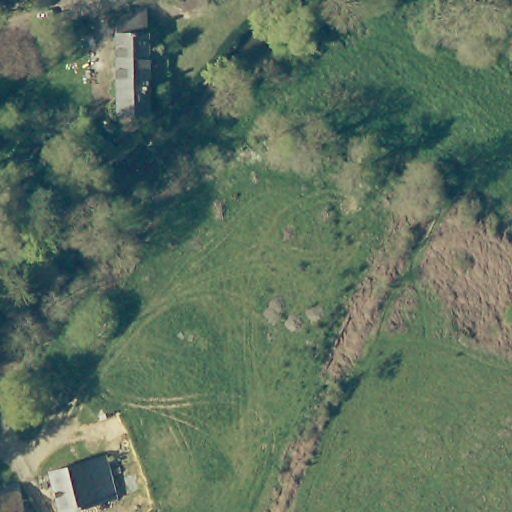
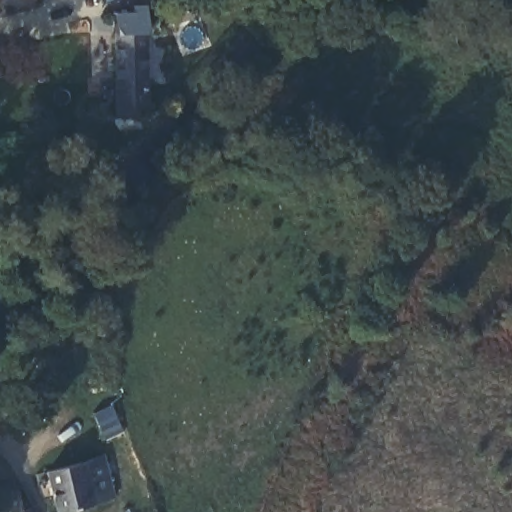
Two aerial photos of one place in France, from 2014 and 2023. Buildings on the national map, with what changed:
unchanged [(207,1),(181,9),(178,0),(224,0),(209,5),(207,1)]
unchanged [(147,121),(114,121),(113,19),(135,20),(135,14),(146,14),(147,121)]
unchanged [(120,503),(90,512),(64,512),(62,507),(54,474),(106,459),(120,503)]
unchanged [(24,512),(0,512),(0,499),(21,494),(23,505),(24,512)]

